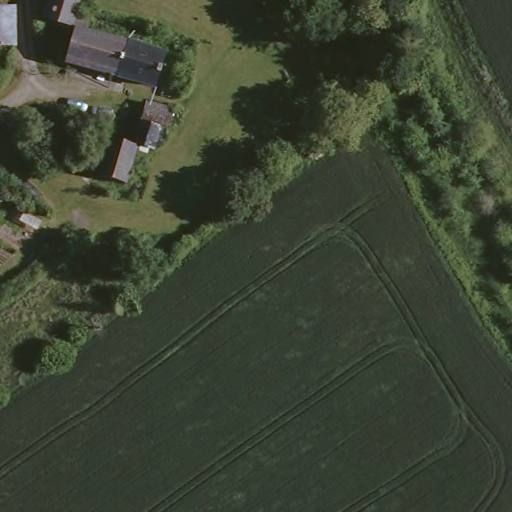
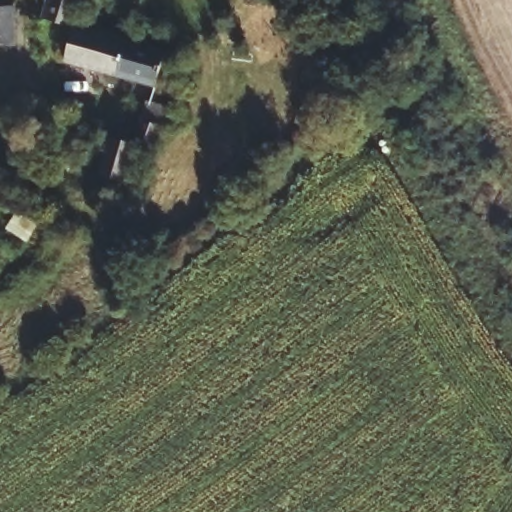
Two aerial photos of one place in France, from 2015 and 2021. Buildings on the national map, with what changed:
unchanged [(45,9),(47,0),(83,0),(77,20),(45,9)]
unchanged [(0,37),(0,6),(18,7),(17,38),(0,37)]
unchanged [(77,25),(127,42),(118,76),(67,58),(77,25)]
unchanged [(169,55),(159,90),(118,76),(127,42),(169,55)]
unchanged [(92,155),(100,130),(126,138),(133,113),(136,105),(138,99),(162,103),(160,111),(157,119),(153,118),(149,130),(144,147),(133,144),(125,170),(121,180),(87,169),(89,164),(92,155)]

